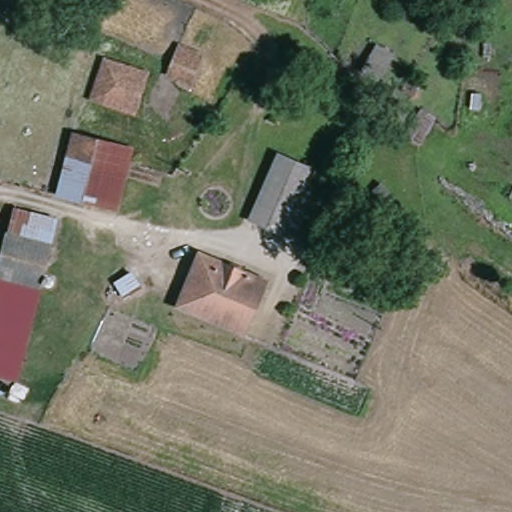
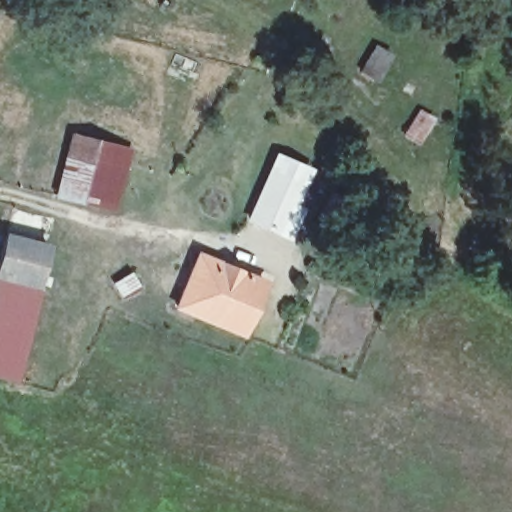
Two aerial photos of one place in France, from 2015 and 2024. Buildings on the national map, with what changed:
demolished [(92,100),(104,61),(147,75),(135,112),(92,100)]
unchanged [(90,139),(103,142),(86,201),(63,194),(82,137),(90,139)]
unchanged [(103,142),(123,149),(106,207),(86,201),(103,142)]
unchanged [(284,227),(251,210),(274,159),(309,176),(284,227)]
unchanged [(24,369),(0,366),(0,259),(12,208),(56,217),(24,369)]
unchanged [(200,254),(264,282),(240,333),(178,306),(200,254)]

